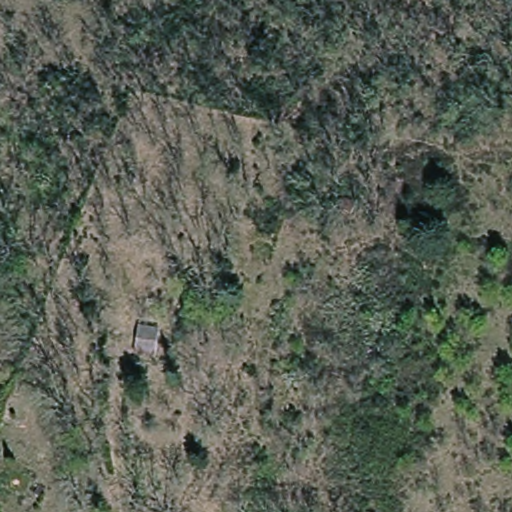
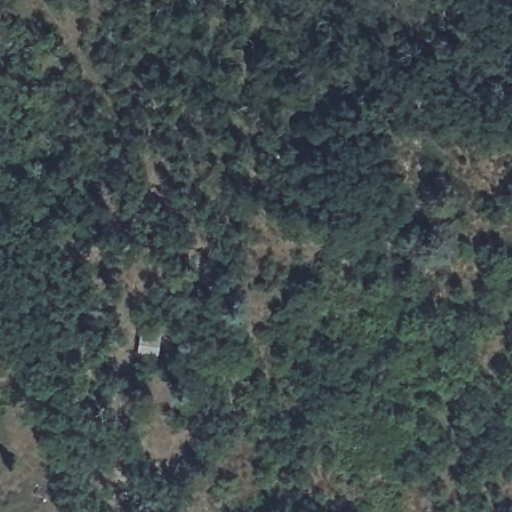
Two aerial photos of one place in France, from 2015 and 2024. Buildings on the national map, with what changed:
unchanged [(161,354),(130,351),(132,327),(165,329),(161,354)]

